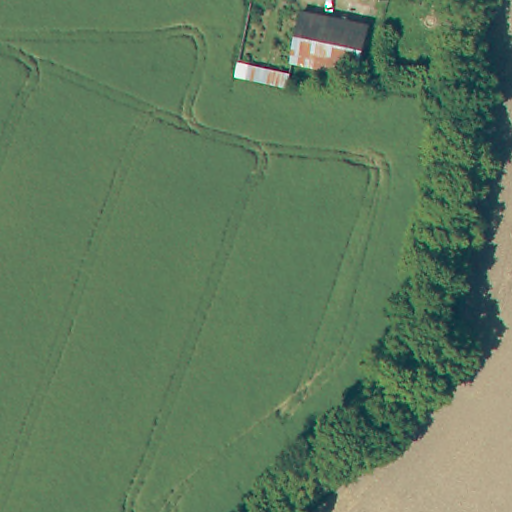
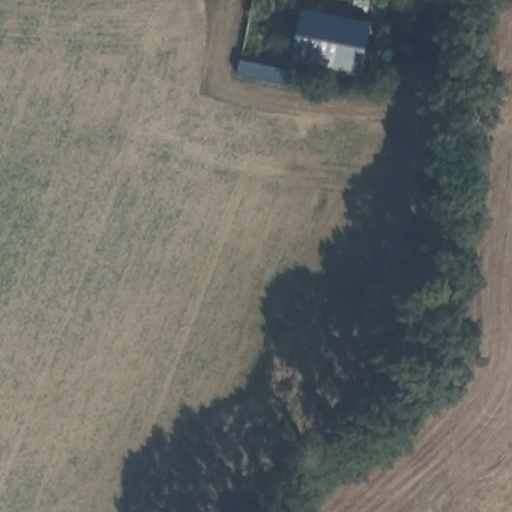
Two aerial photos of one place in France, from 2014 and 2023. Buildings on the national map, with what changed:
unchanged [(376,26),(365,77),(297,64),(308,12),(376,26)]
unchanged [(291,69),(288,84),(259,78),(237,73),(241,59),(291,69)]

